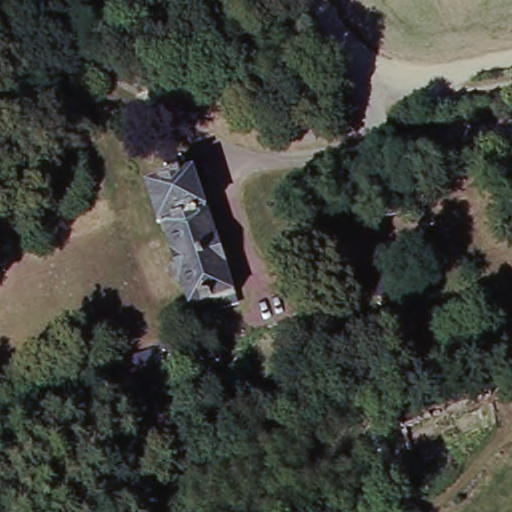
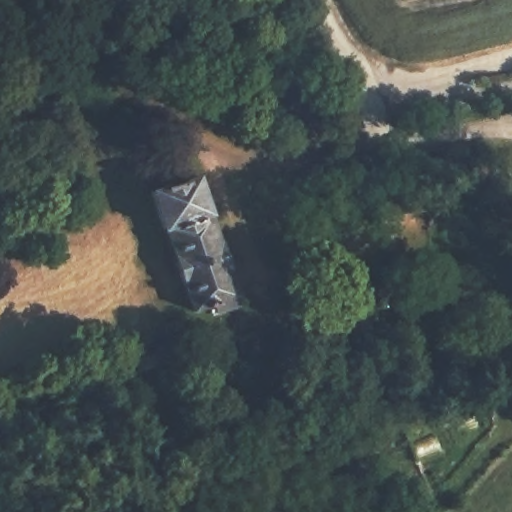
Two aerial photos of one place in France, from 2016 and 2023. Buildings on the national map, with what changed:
unchanged [(421,181),(426,213),(373,222),(368,190),(421,181)]
unchanged [(153,198),(198,183),(220,249),(224,248),(235,274),(232,276),(242,303),(195,319),(187,290),(182,291),(174,264),(178,263),(169,235),(165,237),(156,208),(153,198)]
unchanged [(393,264),(404,271),(387,298),(377,291),(393,264)]

